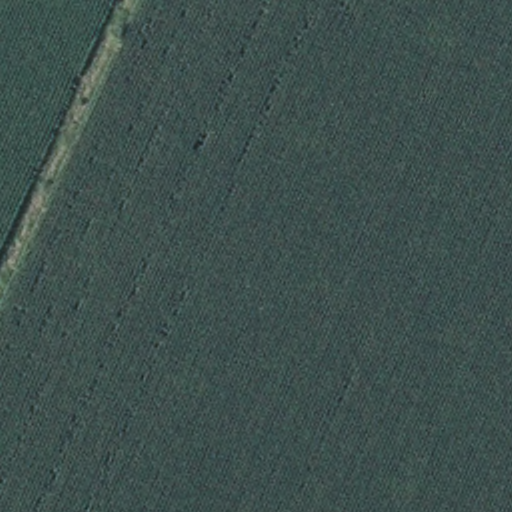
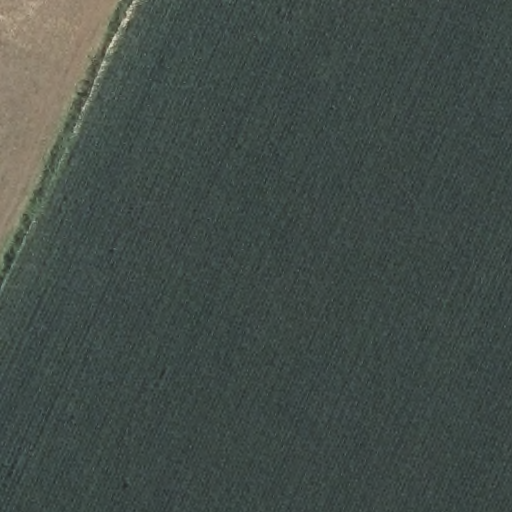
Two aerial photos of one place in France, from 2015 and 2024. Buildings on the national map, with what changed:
[]

